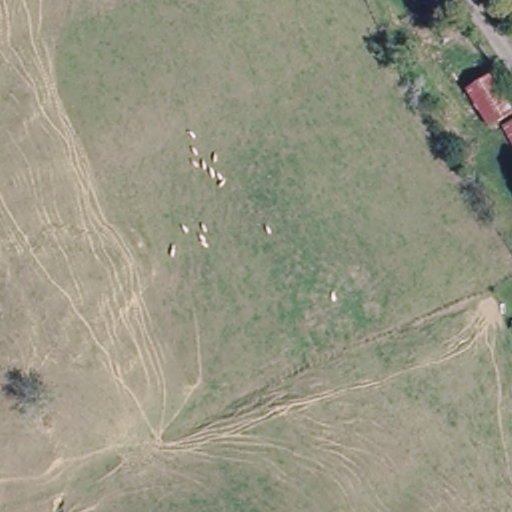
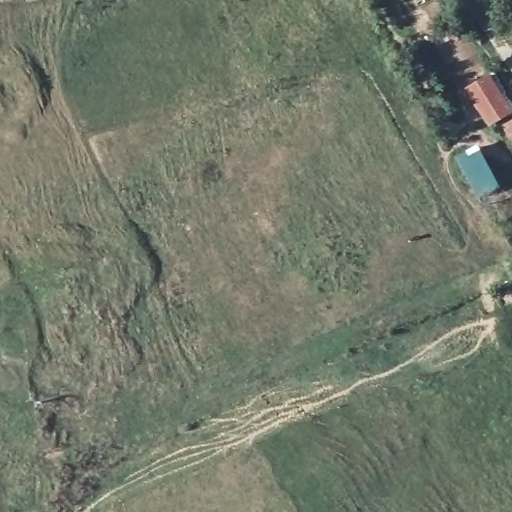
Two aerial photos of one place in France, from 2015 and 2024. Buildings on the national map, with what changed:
unchanged [(488,129),(465,92),(477,82),(504,120),(488,129)]
unchanged [(512,132),(512,152),(503,139),(512,132)]

